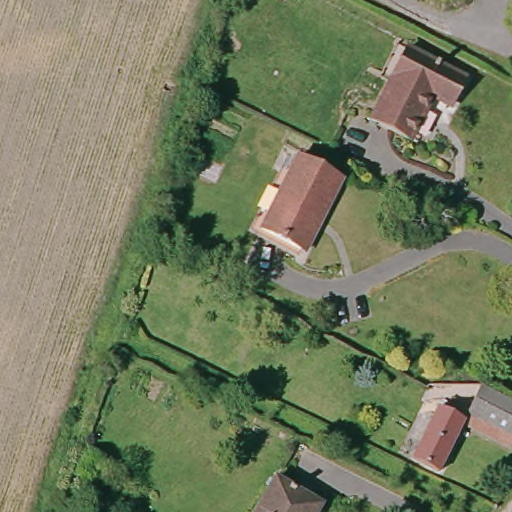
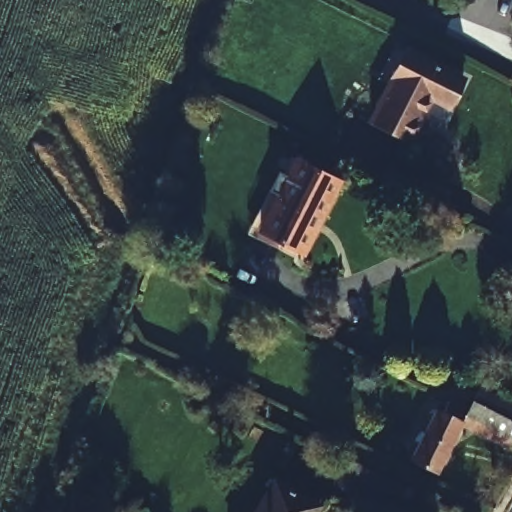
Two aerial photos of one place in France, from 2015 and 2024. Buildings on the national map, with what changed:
unchanged [(407,44),(463,72),(449,101),(432,92),(410,134),(371,114),(407,44)]
unchanged [(299,248),(259,229),(296,157),(340,180),(323,215),(304,251),(299,248)]
unchanged [(409,379),(426,388),(420,401),(403,392),(409,379)]
unchanged [(512,395),(512,440),(511,442),(462,418),(469,401),(480,379),(512,395)]
unchanged [(444,388),(469,401),(462,418),(438,467),(411,454),(444,388)]
unchanged [(317,512),(254,512),(274,477),(321,505),(317,512)]

